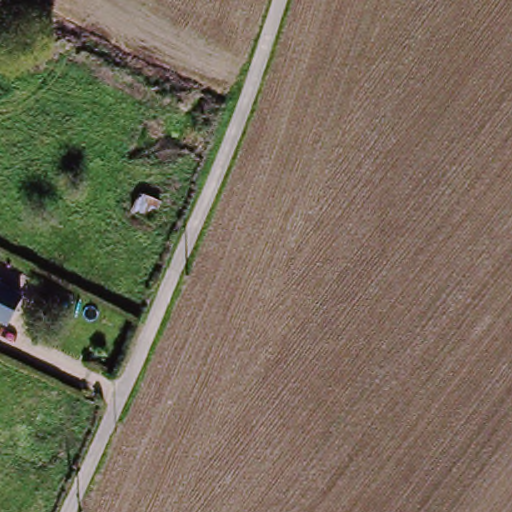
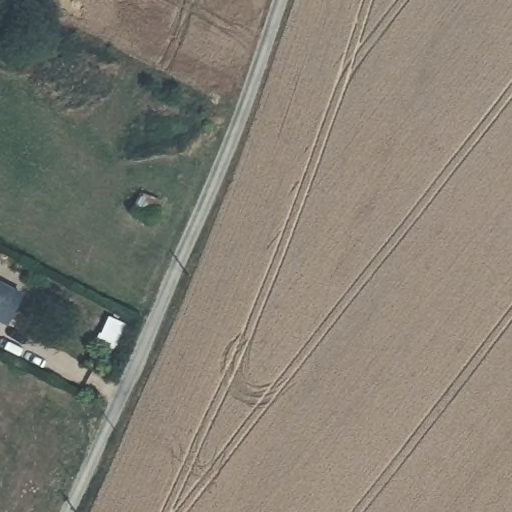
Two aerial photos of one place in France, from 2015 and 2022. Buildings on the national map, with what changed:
unchanged [(154,201),(147,218),(125,209),(133,191),(154,201)]
unchanged [(1,255),(0,257),(0,254),(1,255)]
unchanged [(28,298),(13,327),(0,320),(0,282),(28,298)]

